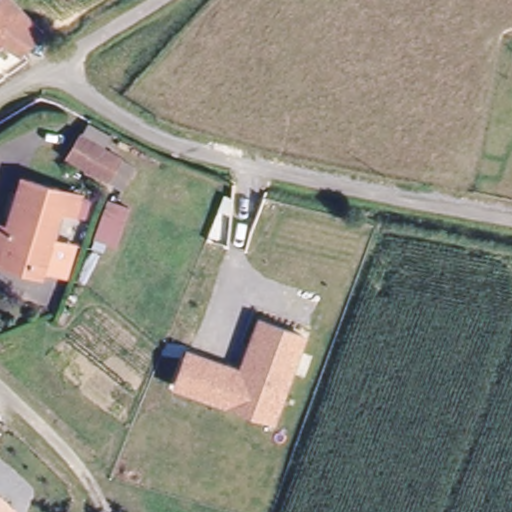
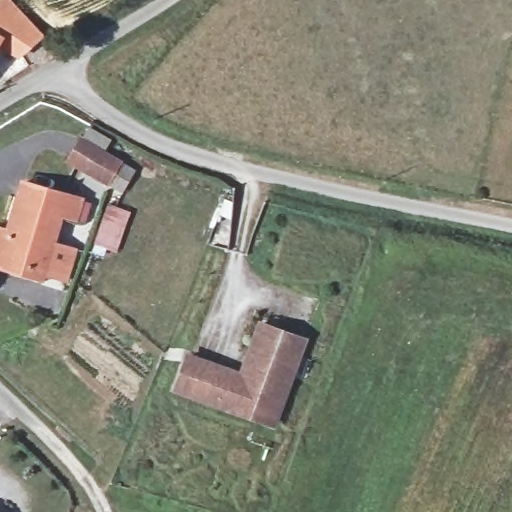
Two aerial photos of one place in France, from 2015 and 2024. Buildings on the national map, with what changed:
unchanged [(6,56),(0,49),(0,0),(16,0),(40,35),(6,56)]
unchanged [(77,142),(130,157),(125,172),(121,182),(70,165),(74,154),(77,142)]
unchanged [(9,230),(22,181),(82,196),(76,217),(59,214),(52,239),(42,276),(0,265),(0,228),(9,230)]
unchanged [(130,210),(117,249),(93,243),(107,204),(130,210)]
unchanged [(79,246),(68,282),(42,276),(52,239),(79,246)]
unchanged [(251,414),(177,386),(190,353),(247,375),(249,367),(246,366),(263,322),(306,337),(279,406),(274,422),(251,414)]

